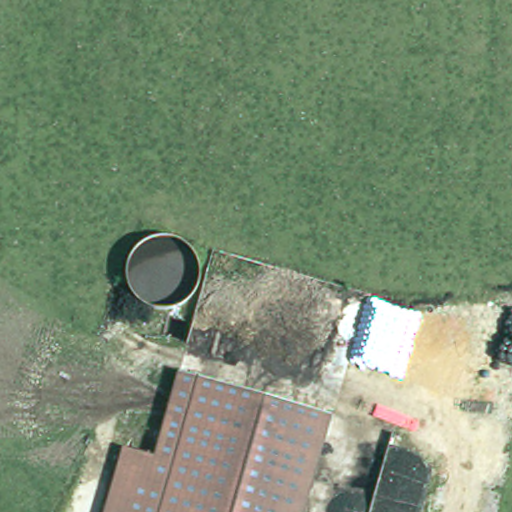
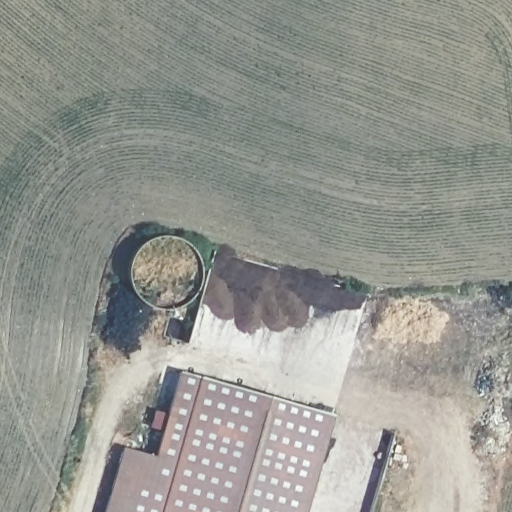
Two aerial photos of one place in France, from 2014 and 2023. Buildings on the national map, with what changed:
unchanged [(157,457),(180,373),(332,415),(306,512),(105,512),(123,447),(157,457)]

